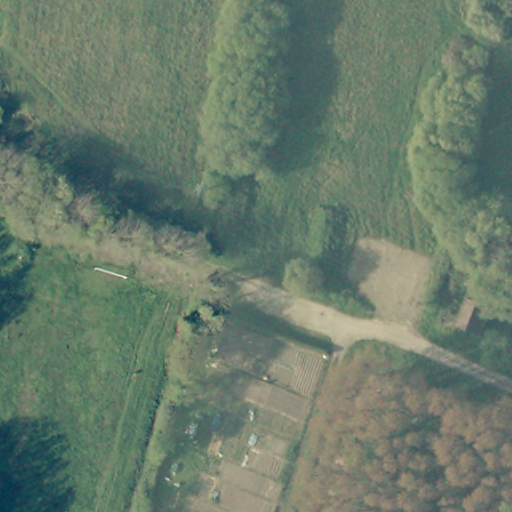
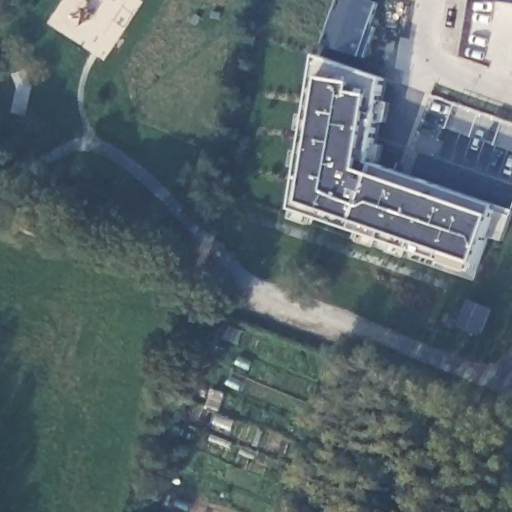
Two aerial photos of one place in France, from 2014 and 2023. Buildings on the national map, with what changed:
new [(474,270),(295,207),(318,54),(384,79),(370,162),(495,205),(474,270)]
unchanged [(478,294),(494,303),(478,333),(461,325),(478,294)]

